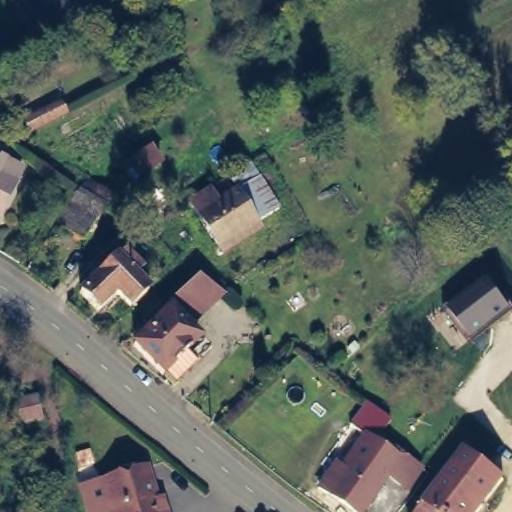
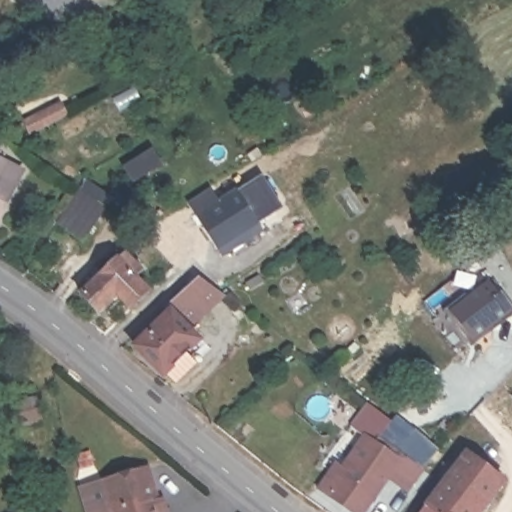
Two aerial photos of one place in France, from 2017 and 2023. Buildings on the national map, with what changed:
unchanged [(155,142),(169,169),(132,189),(119,164),(155,142)]
unchanged [(28,170),(2,221),(0,220),(0,156),(28,170)]
unchanged [(192,203),(212,191),(222,204),(254,185),(251,180),(256,178),(278,213),(257,225),(258,227),(220,249),(190,205),(192,203)]
unchanged [(82,179),(106,194),(85,226),(62,212),(82,179)]
unchanged [(127,318),(113,302),(97,318),(78,300),(92,287),(88,283),(95,275),(99,281),(125,258),(142,278),(162,259),(167,263),(173,269),(127,318)]
unchanged [(512,305),(512,313),(469,344),(445,311),(492,277),(512,305)]
unchanged [(197,278),(202,282),(218,295),(185,329),(197,342),(187,352),(197,363),(176,383),(165,373),(162,375),(135,347),(168,313),(165,309),(197,278)]
unchanged [(35,391),(45,422),(0,435),(0,400),(35,391)]
unchanged [(342,461),(352,468),(375,435),(399,451),(425,471),(413,489),(395,476),(368,512),(327,482),(342,461)]
unchanged [(476,512),(420,512),(467,451),(503,478),(476,512)]
unchanged [(148,468),(160,499),(155,501),(155,503),(164,501),(167,512),(112,512),(103,482),(148,468)]

